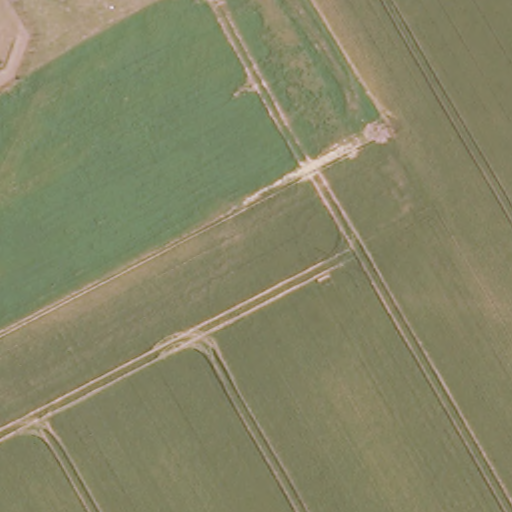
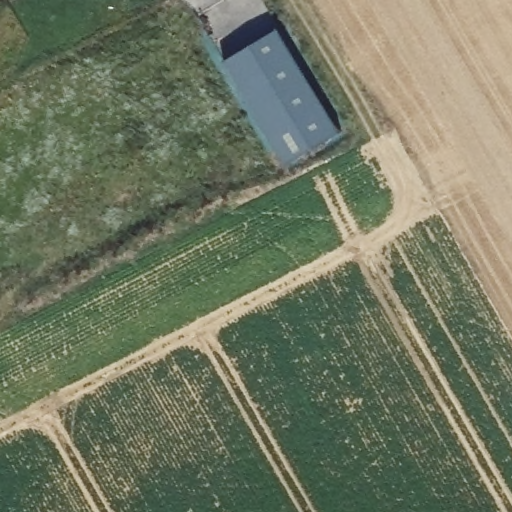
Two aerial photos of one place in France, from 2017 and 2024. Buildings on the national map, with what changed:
new [(277,29),(337,133),(283,164),(222,61),(277,29)]

